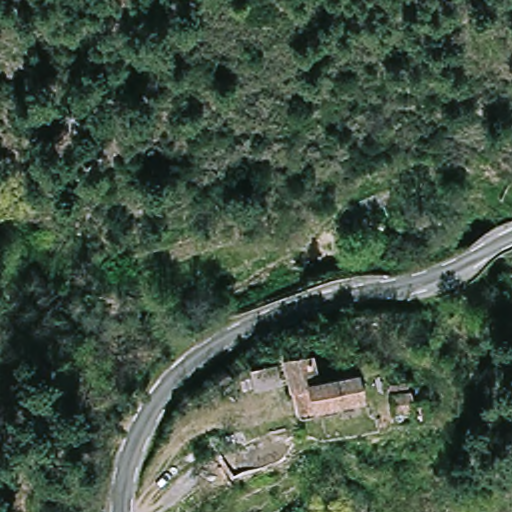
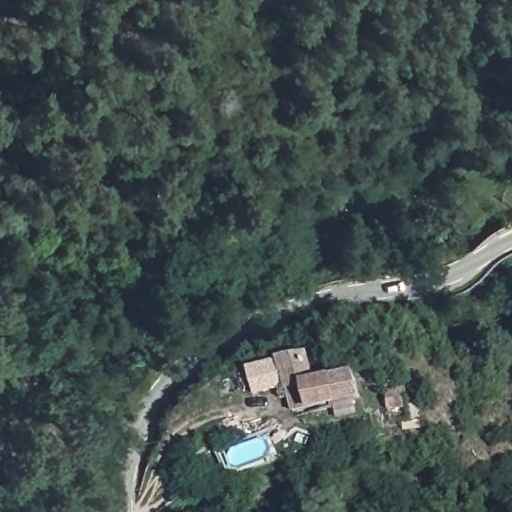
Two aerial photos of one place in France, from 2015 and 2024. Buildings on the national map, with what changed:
unchanged [(291,390),(282,363),(310,355),(317,382),(354,374),(361,396),(310,409),(297,413),(291,390)]
unchanged [(418,402),(395,407),(389,388),(413,382),(418,402)]

